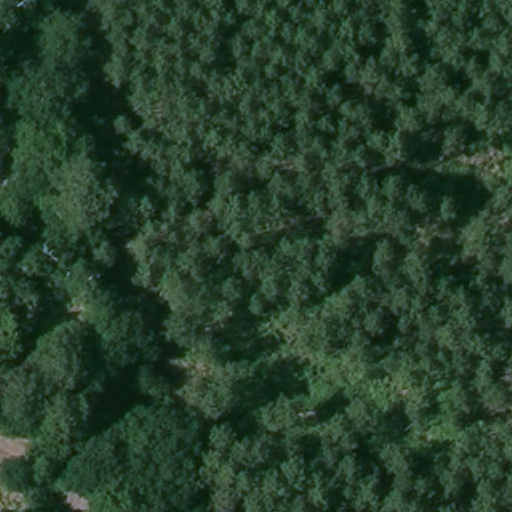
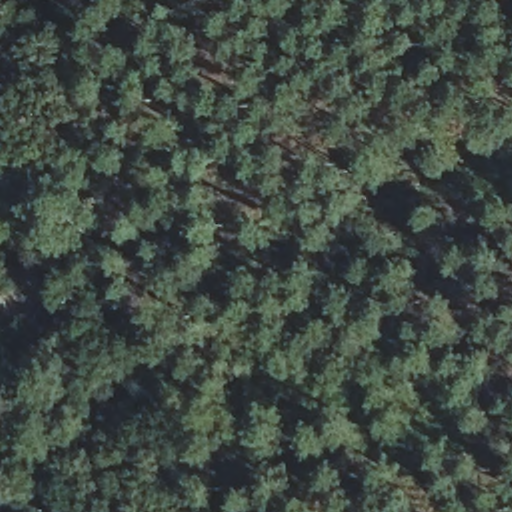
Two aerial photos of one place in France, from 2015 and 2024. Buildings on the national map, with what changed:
[]

